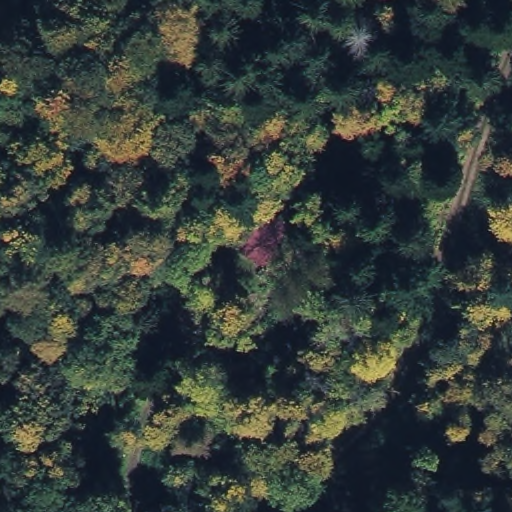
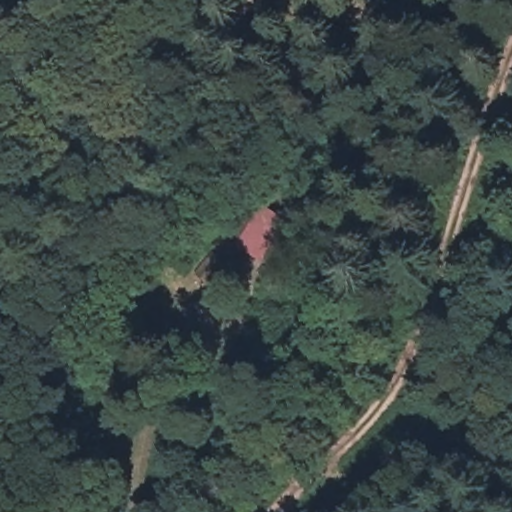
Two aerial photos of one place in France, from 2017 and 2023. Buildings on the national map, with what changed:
unchanged [(271,207),(251,251),(229,245),(250,198),(271,207)]

